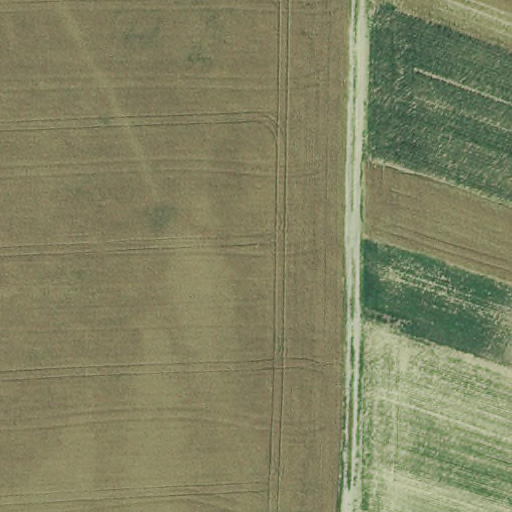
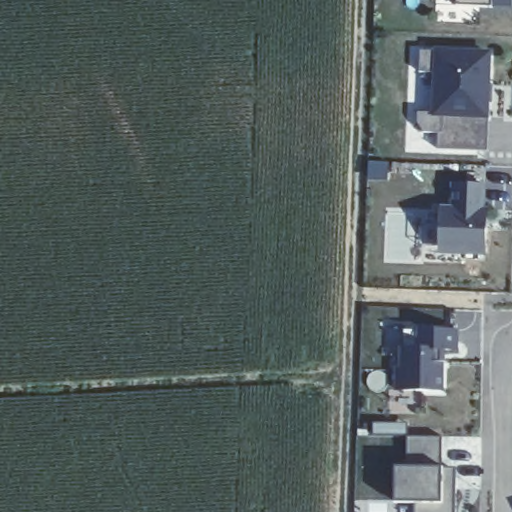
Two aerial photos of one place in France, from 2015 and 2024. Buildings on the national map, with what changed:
new [(512,8),(492,7),(457,8),(456,0),(512,0),(512,8)]
new [(435,49),(492,50),(489,119),(487,152),(438,150),(440,134),(425,132),(419,125),(420,114),(432,114),(434,75),(420,74),(421,52),(435,52),(435,49)]
new [(486,255),(437,254),(438,207),(452,207),(452,184),(486,185),(486,255)]
new [(445,351),(446,362),(444,392),(396,392),(396,368),(400,368),(400,348),(405,348),(405,331),(419,331),(419,325),(443,325),(443,329),(460,330),(459,352),(445,351)]
new [(456,468),(456,512),(416,512),(417,502),(396,502),(395,468),(407,468),(407,437),(443,437),(443,467),(456,468)]

